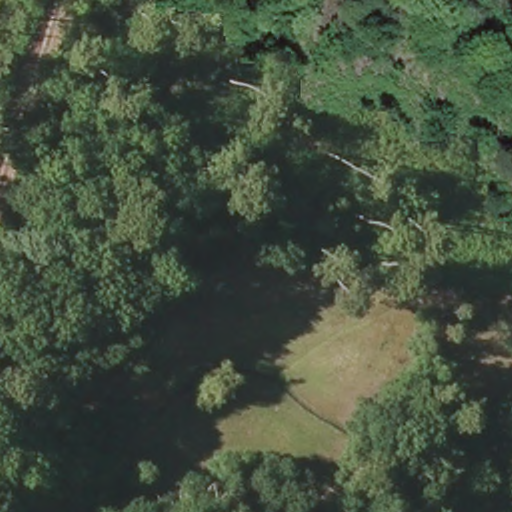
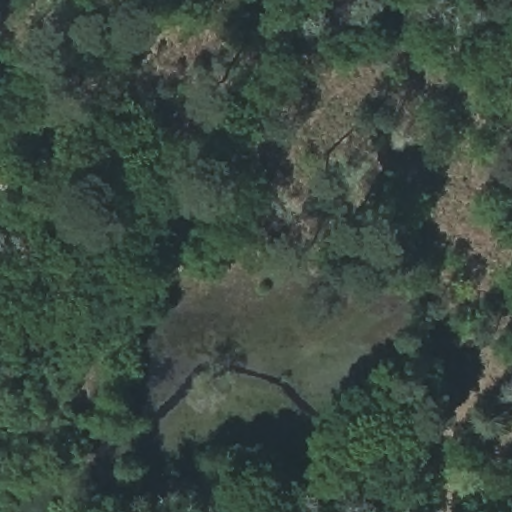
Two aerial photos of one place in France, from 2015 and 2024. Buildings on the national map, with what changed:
[]

